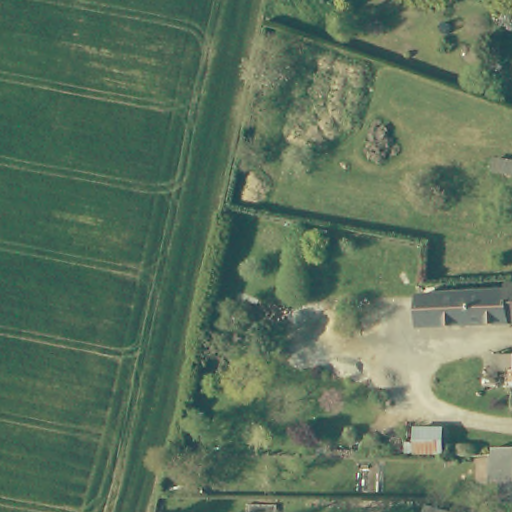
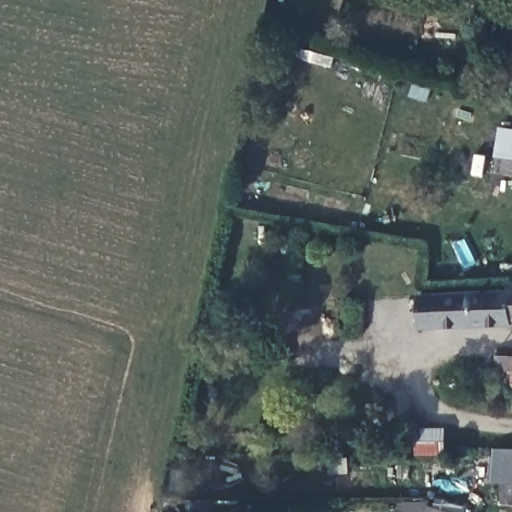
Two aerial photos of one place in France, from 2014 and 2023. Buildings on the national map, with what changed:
new [(512,130),(512,157),(497,155),(501,128),(512,130)]
unchanged [(473,324),(421,325),(420,291),(472,290),(473,324)]
unchanged [(505,371),(505,353),(512,353),(512,384),(505,384),(505,371)]
unchanged [(507,485),(499,486),(498,476),(497,456),(497,453),(507,453),(512,453),(512,504),(508,504),(507,485)]

